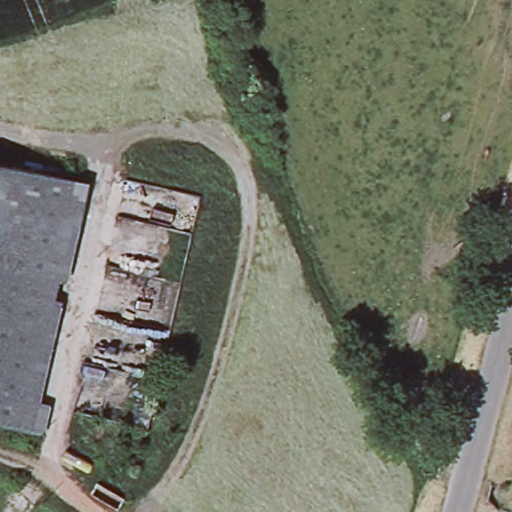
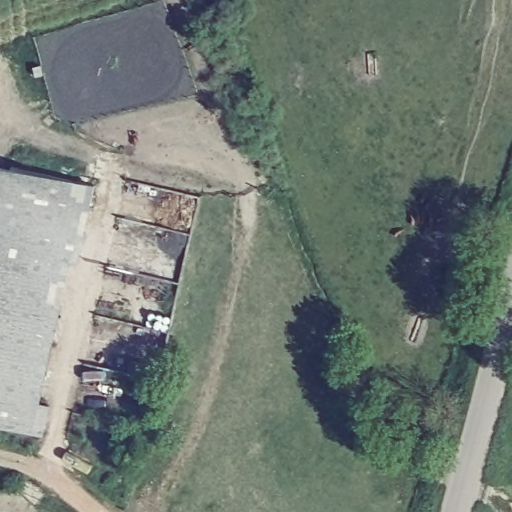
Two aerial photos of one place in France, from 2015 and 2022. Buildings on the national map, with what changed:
unchanged [(0,422),(0,158),(94,179),(45,400),(56,403),(50,434),(0,422)]

